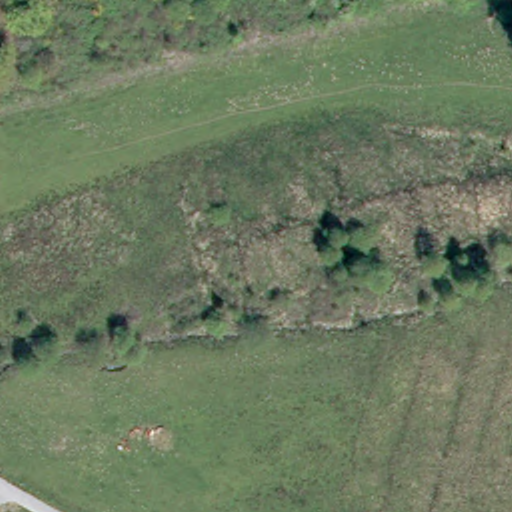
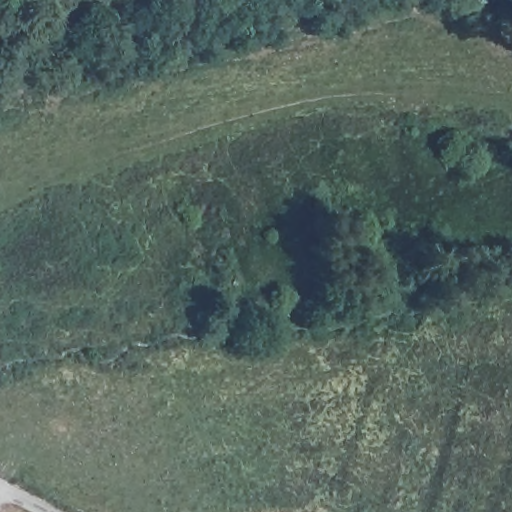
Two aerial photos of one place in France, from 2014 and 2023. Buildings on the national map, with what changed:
[]

